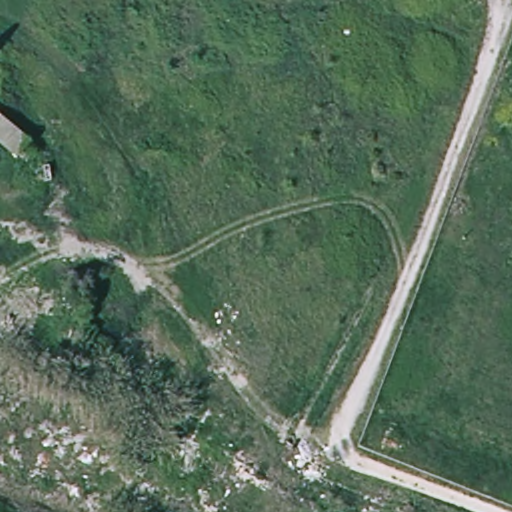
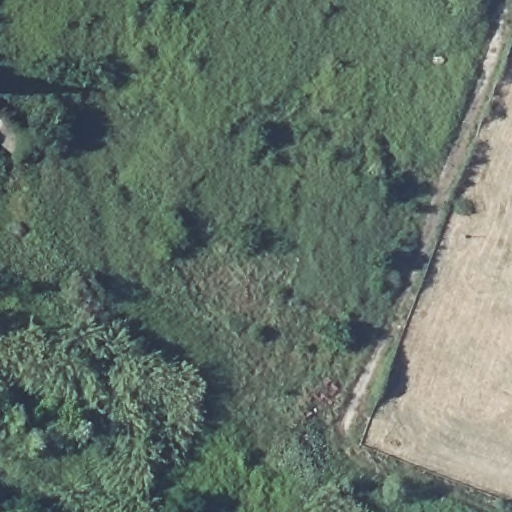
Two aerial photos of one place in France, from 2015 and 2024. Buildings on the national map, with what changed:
unchanged [(33,155),(0,127),(0,107),(44,139),(33,155)]

